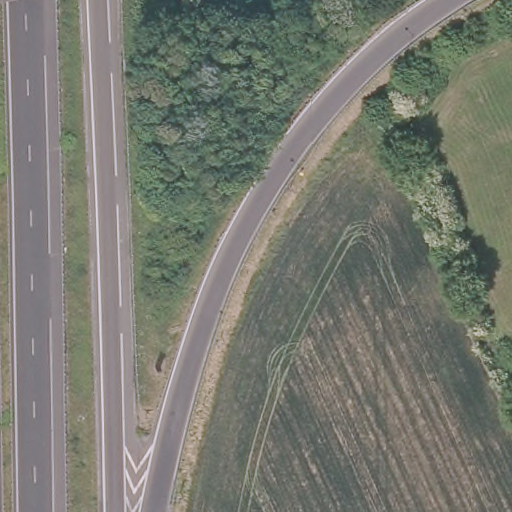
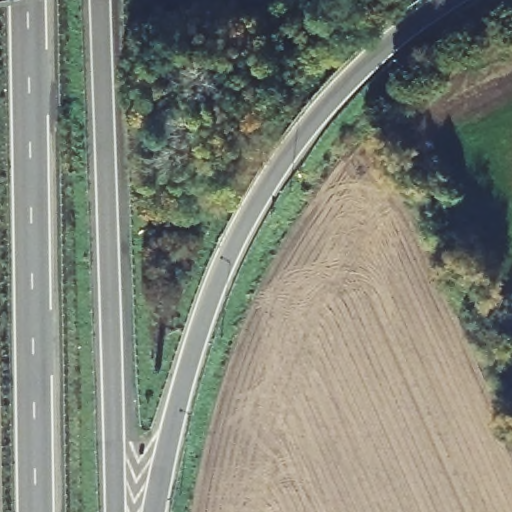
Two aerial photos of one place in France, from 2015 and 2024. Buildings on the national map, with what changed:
[]

